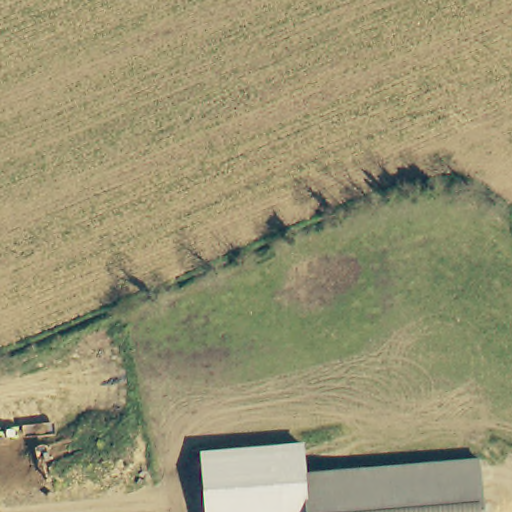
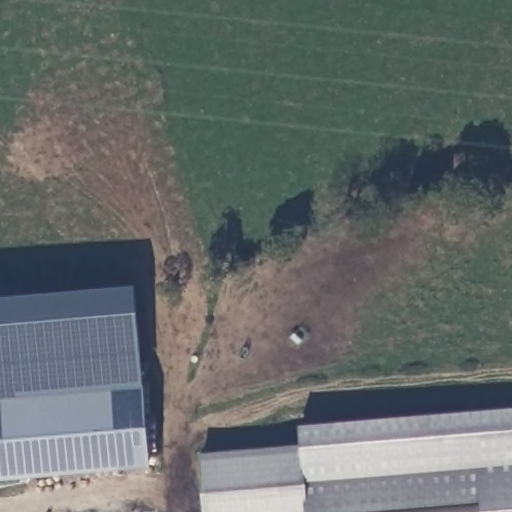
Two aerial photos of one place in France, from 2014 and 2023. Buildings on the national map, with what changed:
new [(150,465),(0,478),(0,394),(144,383),(150,465)]
new [(512,406),(512,512),(484,512),(481,460),(307,473),(305,443),(297,443),(300,424),(512,406)]
unchanged [(305,443),(307,473),(481,460),(484,512),(205,512),(200,451),(305,443)]

